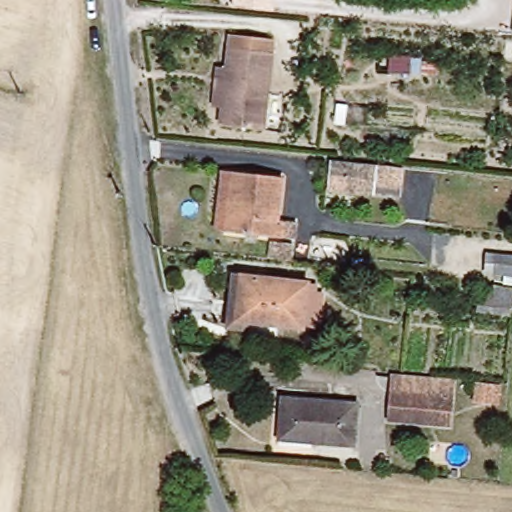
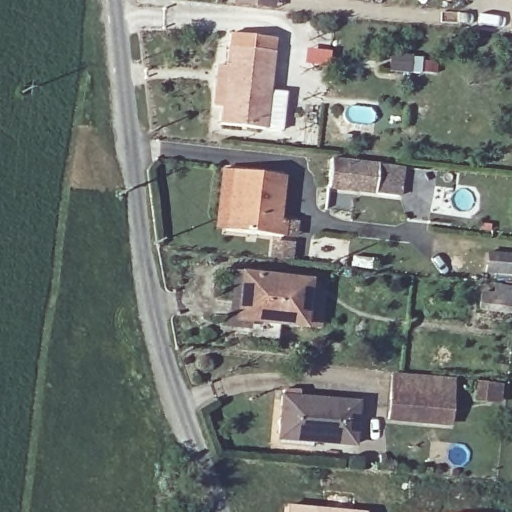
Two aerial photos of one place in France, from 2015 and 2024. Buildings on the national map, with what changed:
unchanged [(270,35),(263,122),(220,121),(226,32),(270,35)]
unchanged [(398,169),(396,194),(324,189),(325,163),(398,169)]
unchanged [(272,215),(279,216),(277,238),(226,233),(212,232),(215,170),(229,171),(276,174),(272,215)]
unchanged [(267,243),(287,243),(287,259),(267,258),(267,243)]
unchanged [(477,283),(487,283),(492,253),(512,254),(512,302),(511,315),(474,308),(477,283)]
unchanged [(407,298),(338,292),(340,264),(410,271),(407,298)]
unchanged [(303,328),(241,323),(246,277),(307,282),(303,328)]
unchanged [(382,421),(383,392),(423,394),(422,424),(382,421)]
unchanged [(277,444),(281,399),(352,405),(351,449),(277,444)]
new [(361,512),(283,512),(284,504),(361,512)]

